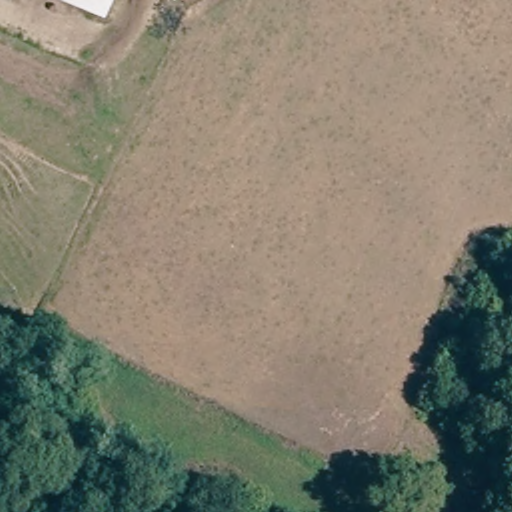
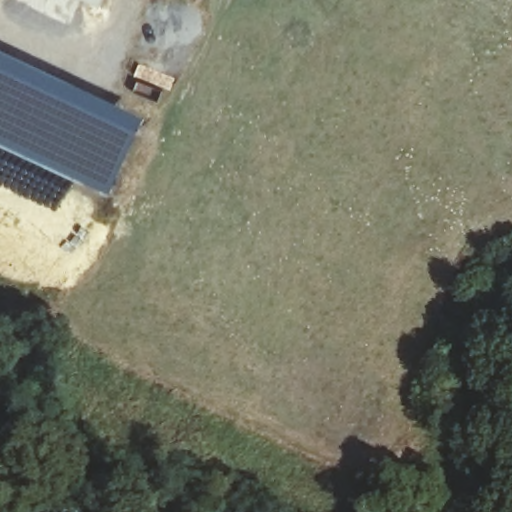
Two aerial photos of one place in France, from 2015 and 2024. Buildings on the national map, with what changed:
unchanged [(87,0),(108,0),(104,8),(87,0)]
new [(146,116),(110,194),(22,154),(0,143),(0,47),(146,116)]

